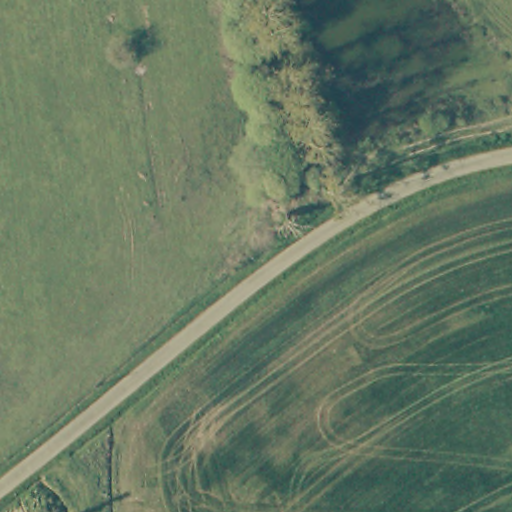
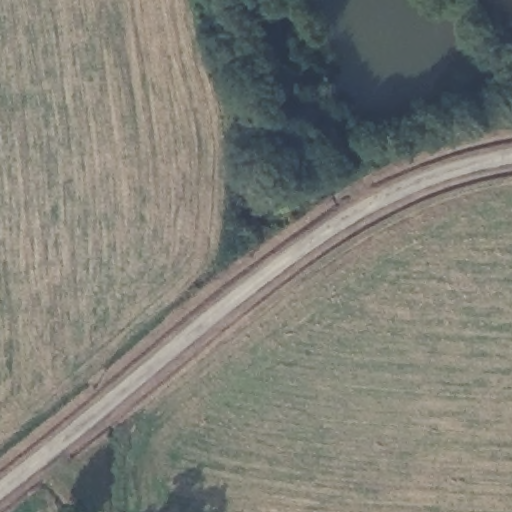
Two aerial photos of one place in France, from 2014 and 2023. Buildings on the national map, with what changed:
[]

